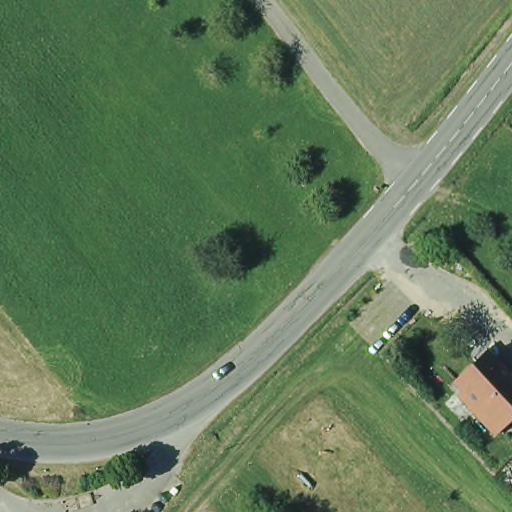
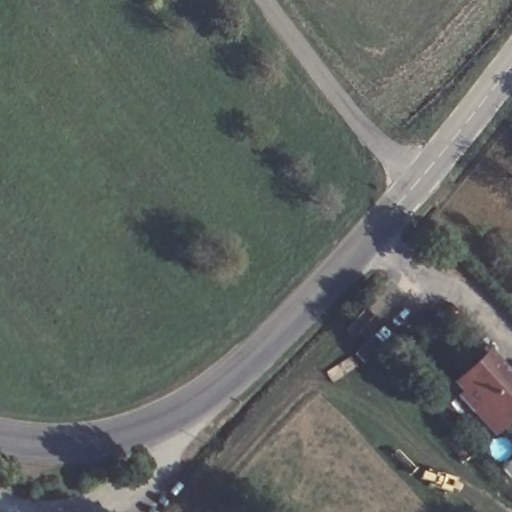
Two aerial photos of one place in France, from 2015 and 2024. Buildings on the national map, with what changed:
unchanged [(480,355),(487,349),(491,353),(512,376),(512,409),(508,412),(512,415),(496,430),(476,408),(452,382),(457,377),(480,355)]

